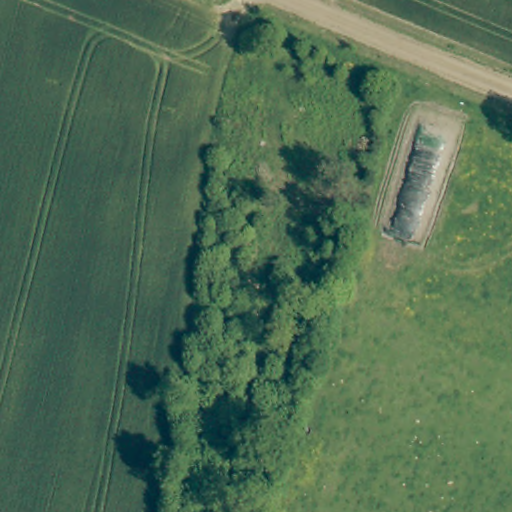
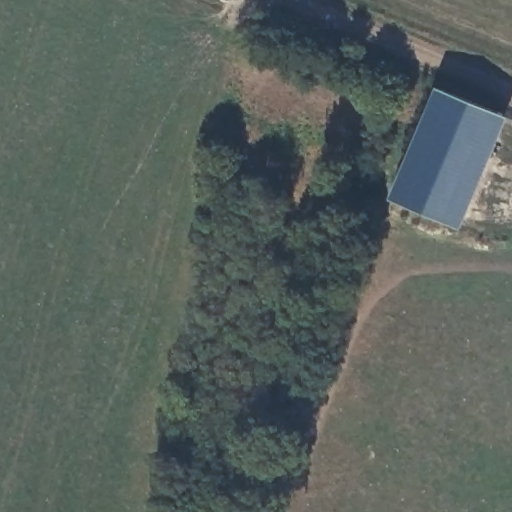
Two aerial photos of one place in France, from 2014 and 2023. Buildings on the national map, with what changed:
new [(465,230),(393,200),(438,89),(512,118),(465,230)]

